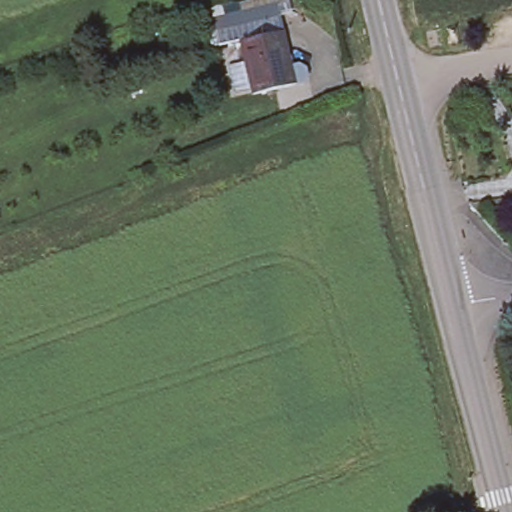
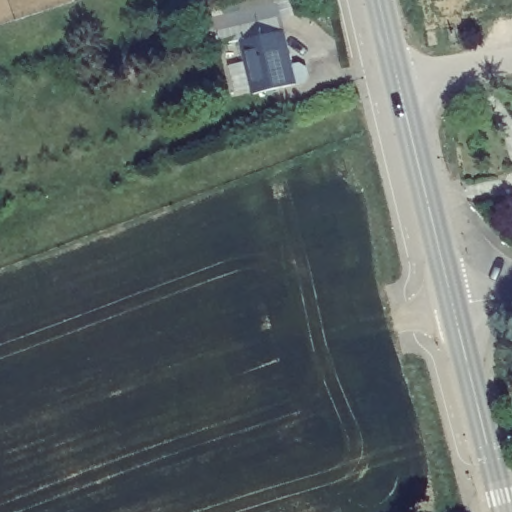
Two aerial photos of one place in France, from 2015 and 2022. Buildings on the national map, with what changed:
unchanged [(249,79),(236,25),(213,30),(210,16),(275,0),(278,15),(291,69),(249,79)]

